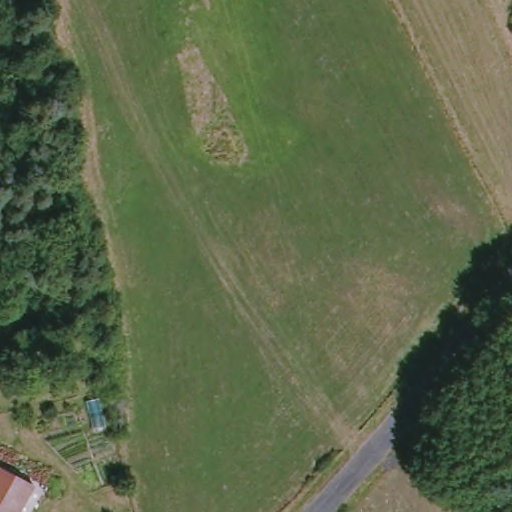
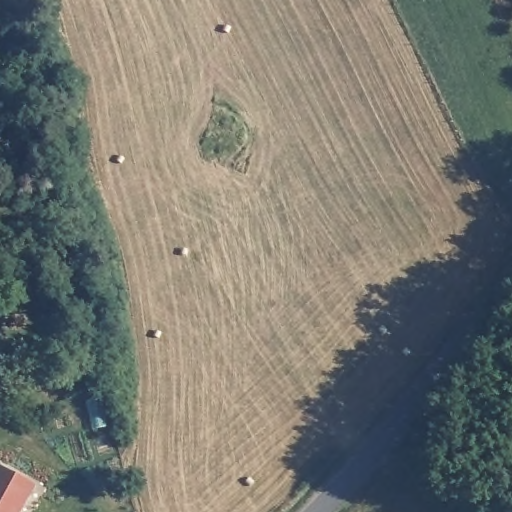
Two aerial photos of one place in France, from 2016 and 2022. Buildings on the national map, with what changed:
unchanged [(37,482),(22,512),(0,512),(0,466),(37,482)]

